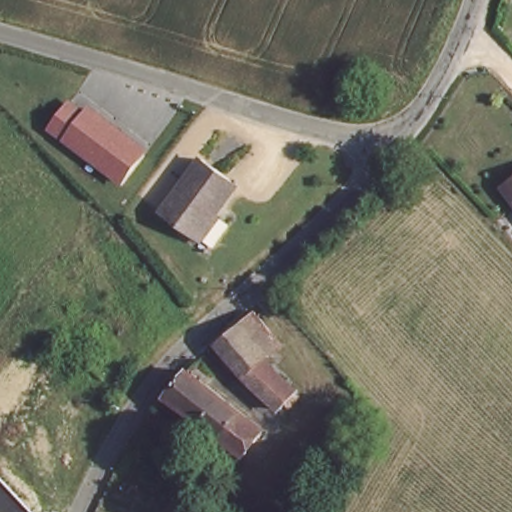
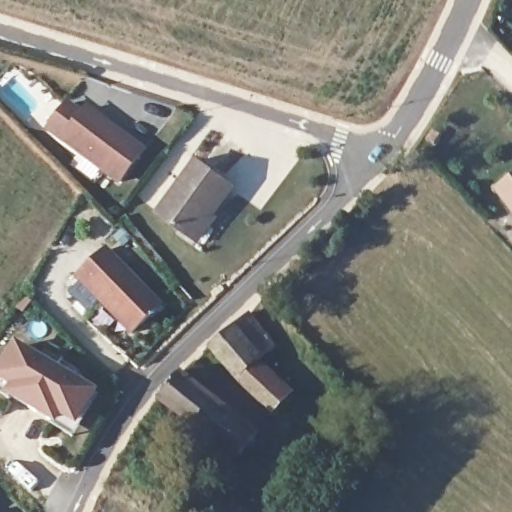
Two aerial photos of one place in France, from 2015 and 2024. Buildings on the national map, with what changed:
unchanged [(122,185),(47,129),(68,101),(84,112),(88,105),(148,150),(122,185)]
unchanged [(197,242),(158,217),(196,160),(234,184),(197,242)]
unchanged [(499,185),(512,174),(512,202),(499,185)]
new [(108,249),(162,305),(133,333),(79,276),(108,249)]
unchanged [(260,350),(273,365),(270,368),(274,373),(279,370),(294,386),(290,391),(294,395),(281,407),(279,404),(272,409),(233,375),(207,341),(245,307),(273,338),(260,350)]
new [(0,383),(0,370),(16,344),(99,391),(77,428),(61,420),(57,427),(6,398),(11,389),(0,383)]
unchanged [(203,388),(268,436),(261,445),(255,441),(238,464),(161,398),(179,375),(192,365),(209,380),(203,388)]

